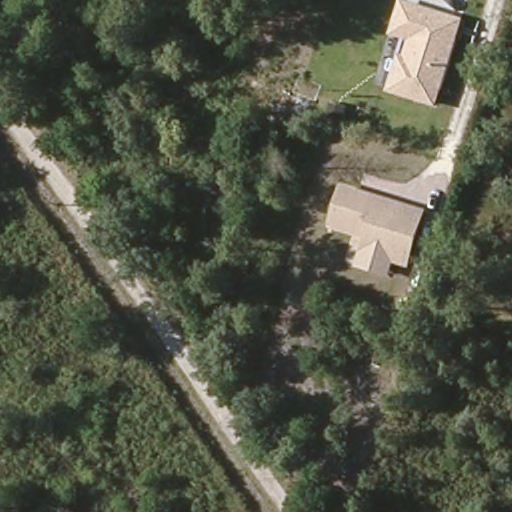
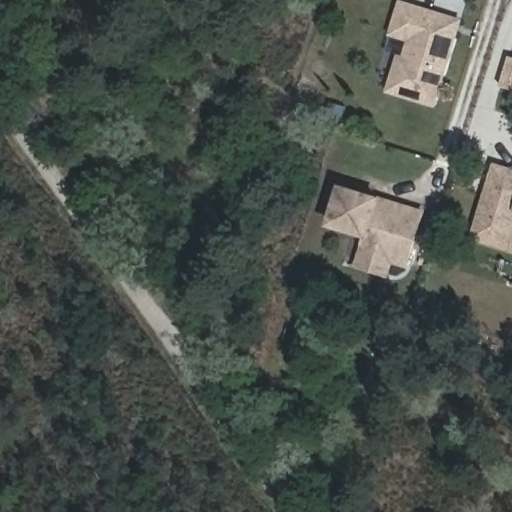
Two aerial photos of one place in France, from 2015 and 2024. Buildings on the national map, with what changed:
unchanged [(387,92),(403,40),(388,35),(399,0),(403,0),(464,19),(437,107),(387,92)]
new [(510,57),(512,57),(512,89),(501,86),(510,57)]
new [(495,165),(512,169),(512,245),(510,250),(472,239),(495,165)]
unchanged [(410,269),(395,264),(391,277),(354,267),(365,239),(328,226),(341,182),(427,209),(410,269)]

